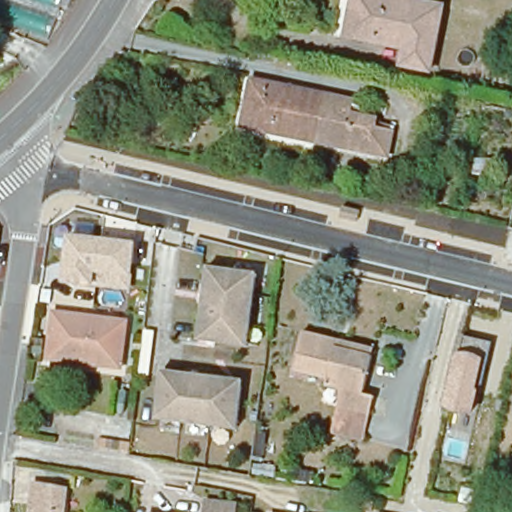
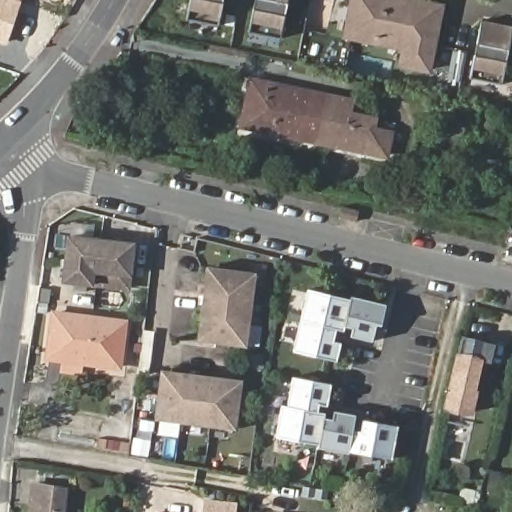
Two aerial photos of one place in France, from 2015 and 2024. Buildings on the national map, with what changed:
demolished [(55,34),(0,17),(0,0),(65,0),(55,34)]
new [(21,2),(6,46),(0,44),(0,0),(19,0),(21,2)]
new [(187,20),(191,0),(222,0),(217,26),(187,20)]
new [(250,32),(256,0),(289,0),(282,38),(250,32)]
unchanged [(403,72),(407,55),(352,44),(361,0),(368,0),(441,15),(428,79),(403,72)]
new [(471,80),(482,20),(512,26),(501,86),(471,80)]
unchanged [(258,76),(368,97),(364,114),(389,118),(388,130),(402,132),(397,157),(244,127),(258,76)]
unchanged [(345,205),(362,209),(359,219),(342,215),(345,205)]
unchanged [(131,291),(64,285),(69,237),(136,243),(131,291)]
unchanged [(246,347),(194,341),(203,264),(257,270),(246,347)]
new [(307,289),(351,300),(345,327),(344,331),(336,329),(300,321),(307,289)]
new [(352,297),(386,305),(381,325),(376,323),(372,341),(351,336),(353,328),(345,327),(351,300),(352,297)]
unchanged [(68,367),(69,357),(53,356),(60,311),(130,318),(126,363),(87,360),(86,368),(68,367)]
new [(293,351),(300,321),(336,329),(334,341),(341,342),(337,361),(293,351)]
demolished [(334,436),(342,411),(346,395),(328,391),(330,382),(296,374),(307,333),(340,341),(339,350),(378,358),(369,397),(380,400),(376,418),(365,443),(334,436)]
unchanged [(478,415),(444,407),(463,337),(495,342),(478,415)]
unchanged [(153,420),(159,369),(242,378),(235,430),(153,420)]
new [(328,406),(320,405),(319,412),(288,406),(293,377),(332,383),(328,406)]
new [(282,405),(288,406),(319,412),(324,412),(324,417),(319,444),(277,437),(282,405)]
new [(318,449),(319,444),(324,417),(331,418),(332,411),(356,415),(353,430),(350,451),(349,454),(318,449)]
new [(350,451),(353,430),(362,432),(364,420),(399,427),(393,459),(350,451)]
unchanged [(73,491),(69,512),(36,512),(40,485),(73,491)]
unchanged [(237,502),(235,512),(203,512),(206,498),(237,502)]
unchanged [(150,512),(150,510),(170,512),(150,512)]

